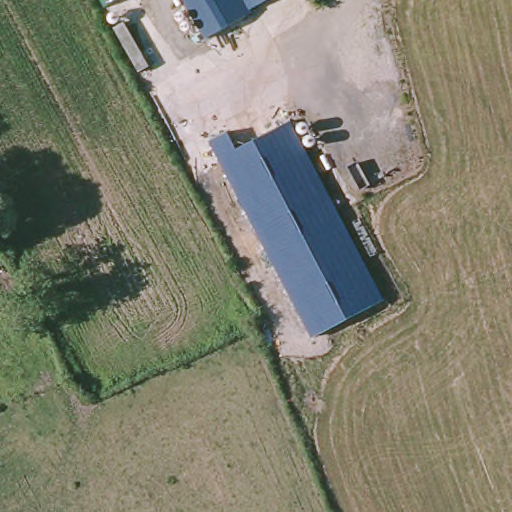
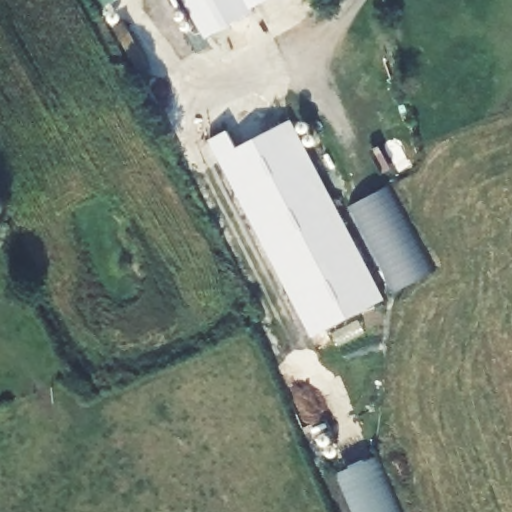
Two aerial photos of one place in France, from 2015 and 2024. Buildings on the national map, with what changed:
unchanged [(102,7),(98,0),(114,0),(102,7)]
unchanged [(205,35),(186,0),(239,0),(246,13),(205,35)]
unchanged [(246,13),(239,0),(272,0),(246,13)]
unchanged [(389,300),(318,334),(227,163),(222,165),(212,144),(233,134),(240,148),(291,124),(389,300)]
new [(397,291),(350,206),(391,184),(436,270),(397,291)]
new [(402,512),(350,512),(335,474),(379,456),(402,512)]

